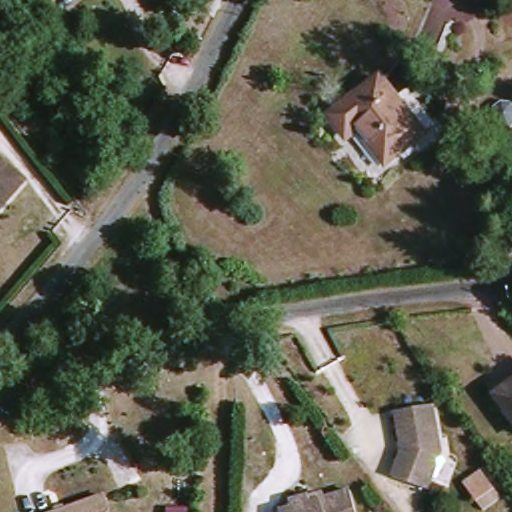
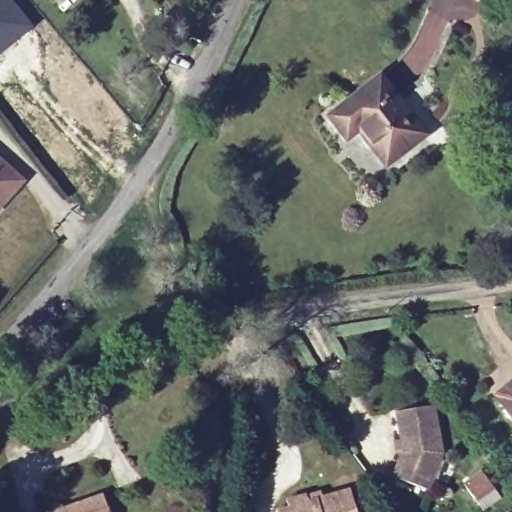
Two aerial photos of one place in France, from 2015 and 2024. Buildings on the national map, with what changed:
new [(12,1),(34,25),(0,53),(0,0),(13,0),(12,1)]
unchanged [(54,1),(54,0),(70,0),(60,8),(54,1)]
unchanged [(404,95),(418,86),(445,121),(432,131),(435,135),(389,170),(359,136),(349,143),(330,114),(388,70),(404,95)]
unchanged [(512,129),(506,125),(505,111),(512,107),(512,129)]
unchanged [(30,180),(0,211),(0,152),(30,180)]
unchanged [(512,389),(512,414),(500,397),(512,389)]
unchanged [(446,458),(433,495),(397,482),(406,455),(400,417),(438,411),(446,458)]
unchanged [(494,491),(476,503),(464,485),(482,472),(494,491)]
unchanged [(287,504),(307,499),(307,501),(322,497),(323,502),(351,495),(356,512),(286,512),(289,511),(287,504)]
unchanged [(110,512),(86,512),(107,505),(110,512)]

